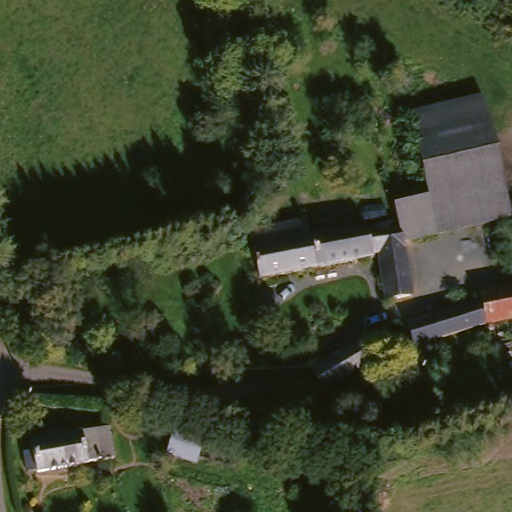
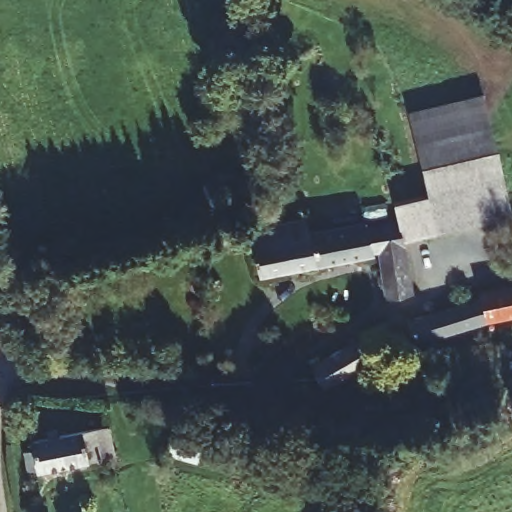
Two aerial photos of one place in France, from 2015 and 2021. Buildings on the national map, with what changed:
unchanged [(398,232),(397,229),(395,208),(435,203),(413,116),(481,98),(508,213),(469,224),(398,232)]
unchanged [(304,275),(303,268),(264,272),(260,242),(262,241),(259,223),(282,220),(313,215),(316,233),(318,232),(326,268),(327,273),(304,275)]
unchanged [(407,296),(381,299),(375,261),(326,268),(318,232),(371,224),(373,231),(397,229),(398,232),(407,296)]
unchanged [(417,341),(412,318),(481,298),(481,292),(512,285),(512,320),(417,341)]
unchanged [(331,387),(327,380),(320,370),(338,360),(352,352),(362,347),(374,364),(351,376),(331,387)]
unchanged [(33,447),(45,444),(44,440),(115,421),(121,446),(50,464),(37,468),(33,447)]
unchanged [(208,467),(166,461),(175,430),(214,437),(208,467)]

